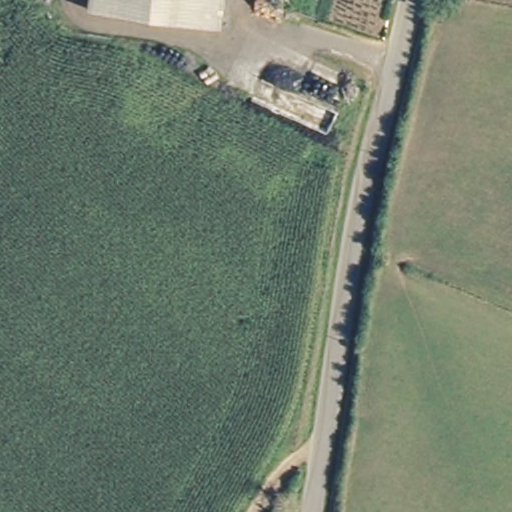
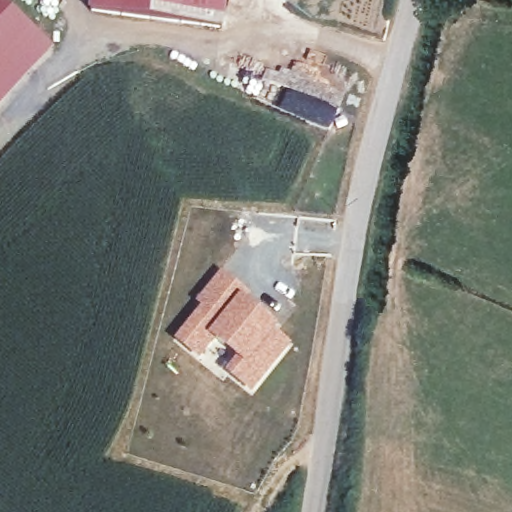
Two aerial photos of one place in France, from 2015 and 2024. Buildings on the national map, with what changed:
new [(0,106),(0,0),(53,48),(0,106)]
unchanged [(105,14),(107,0),(240,0),(234,35),(105,14)]
new [(247,292),(242,298),(279,327),(275,332),(290,344),(250,394),(223,374),(234,358),(210,339),(196,359),(173,340),(201,306),(195,303),(221,269),(247,292)]

